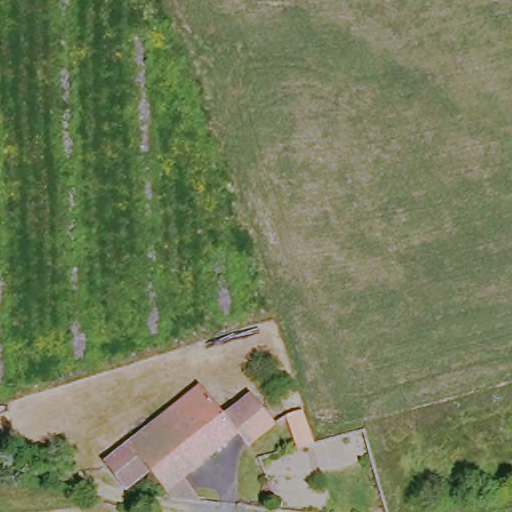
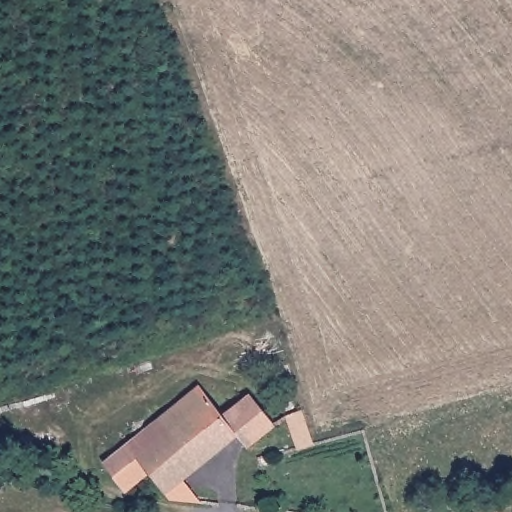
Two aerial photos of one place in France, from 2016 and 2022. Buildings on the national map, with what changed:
unchanged [(147,472),(122,487),(104,460),(195,384),(220,415),(248,393),(272,424),(247,445),(235,431),(178,479),(195,499),(167,496),(163,492),(147,472)]
unchanged [(312,445),(295,449),(283,410),(298,406),(308,435),(312,445)]

